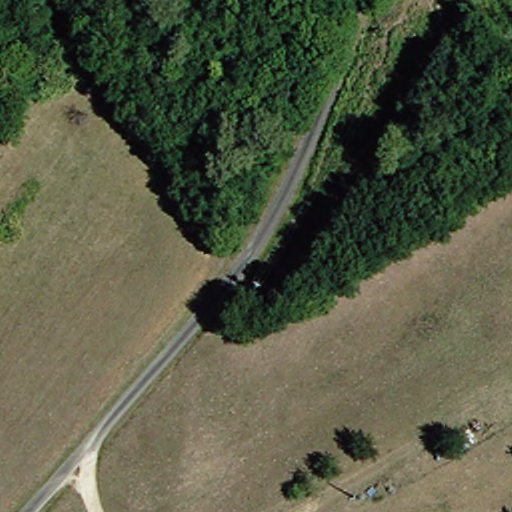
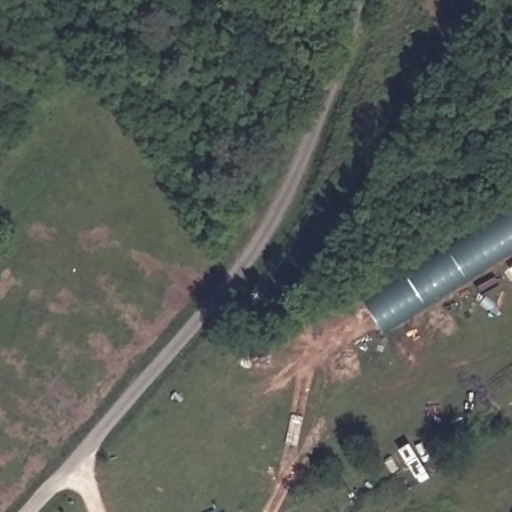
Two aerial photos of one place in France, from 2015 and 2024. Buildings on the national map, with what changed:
new [(384,335),(362,302),(512,211),(512,255),(384,335)]

